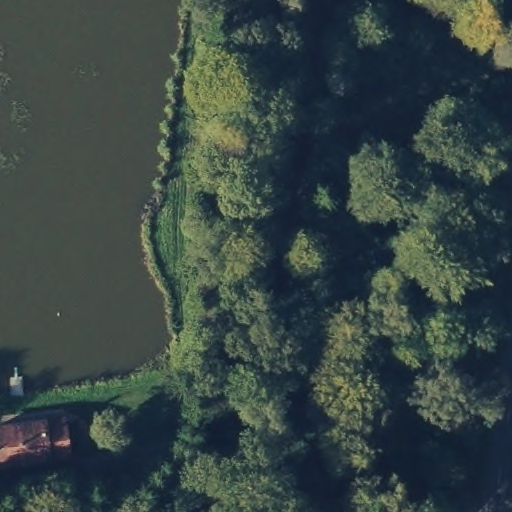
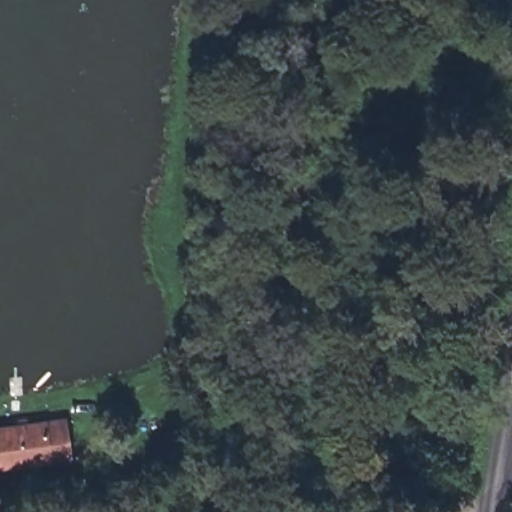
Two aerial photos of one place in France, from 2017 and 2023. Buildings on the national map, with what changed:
unchanged [(0,472),(0,423),(70,414),(76,463),(0,472)]

